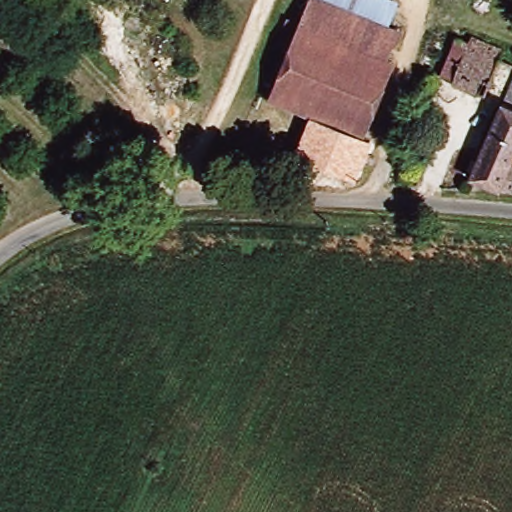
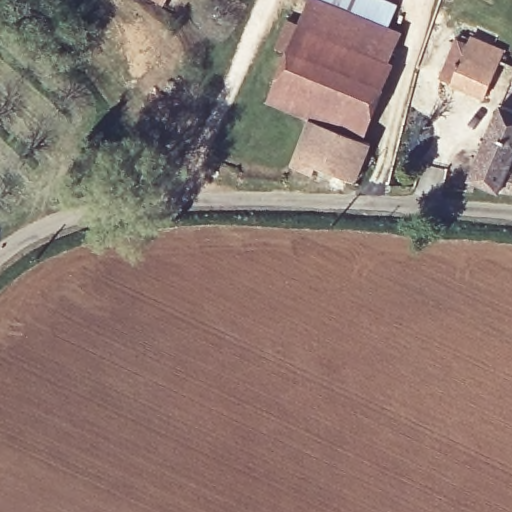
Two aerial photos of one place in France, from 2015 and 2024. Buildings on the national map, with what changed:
unchanged [(402,34),(362,141),(268,105),(311,0),(384,0),(397,5),(388,29),(402,34)]
unchanged [(500,59),(497,67),(512,73),(512,167),(500,197),(468,186),(497,118),(437,90),(457,44),(500,59)]
unchanged [(512,189),(512,199),(507,199),(512,189)]

